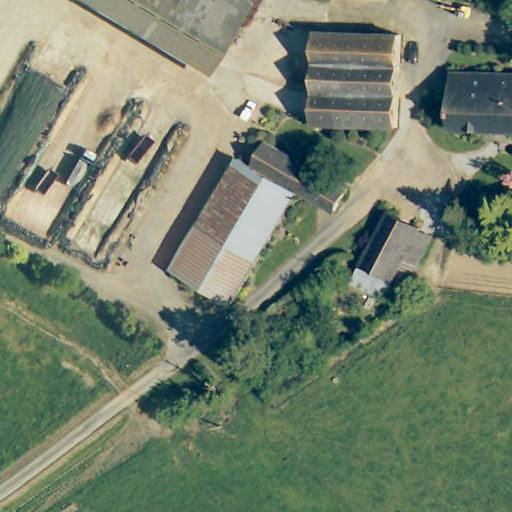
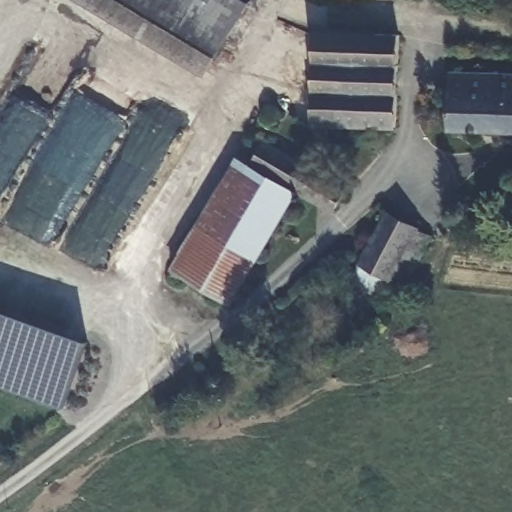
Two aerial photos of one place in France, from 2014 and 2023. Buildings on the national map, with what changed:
unchanged [(218,62),(114,0),(179,0),(235,34),(218,62)]
unchanged [(235,34),(179,0),(243,0),(253,6),(235,34)]
unchanged [(402,33),(400,126),(317,125),(319,31),(402,33)]
unchanged [(512,76),(512,131),(452,128),(455,74),(512,76)]
unchanged [(360,194),(347,215),(268,170),(281,148),(360,194)]
unchanged [(252,162),(304,194),(265,261),(214,230),(252,162)]
unchanged [(372,281),(378,270),(367,263),(396,210),(426,226),(440,234),(413,279),(400,272),(396,280),(394,279),(387,290),(372,281)]
unchanged [(265,261),(243,297),(234,305),(233,305),(185,277),(214,230),(265,261)]
new [(0,384),(0,308),(90,339),(64,406),(0,384)]

